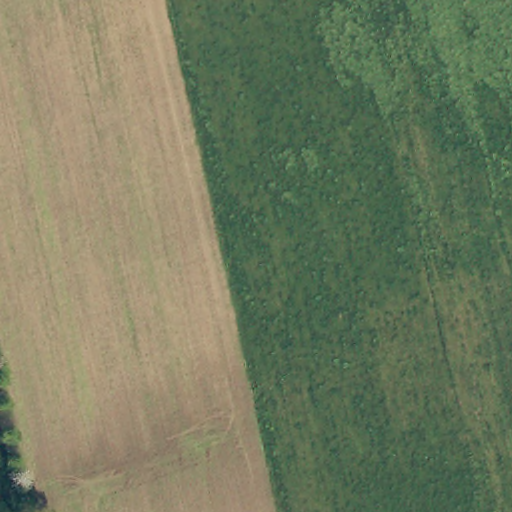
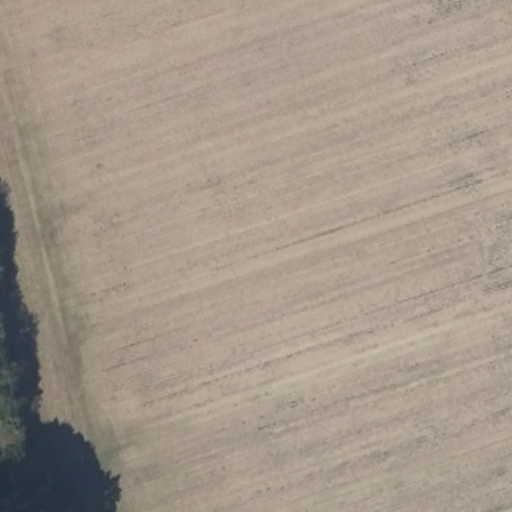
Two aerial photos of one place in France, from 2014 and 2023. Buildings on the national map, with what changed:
[]

